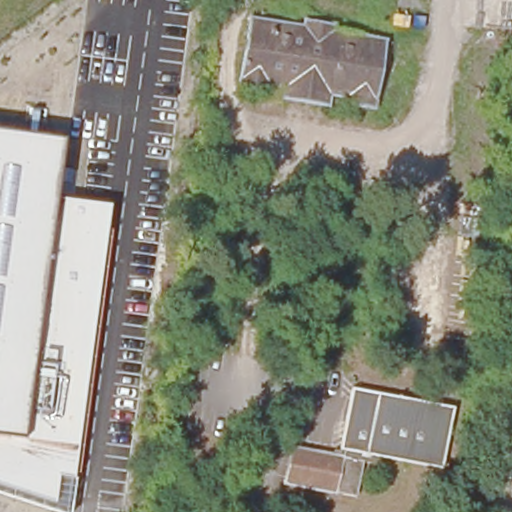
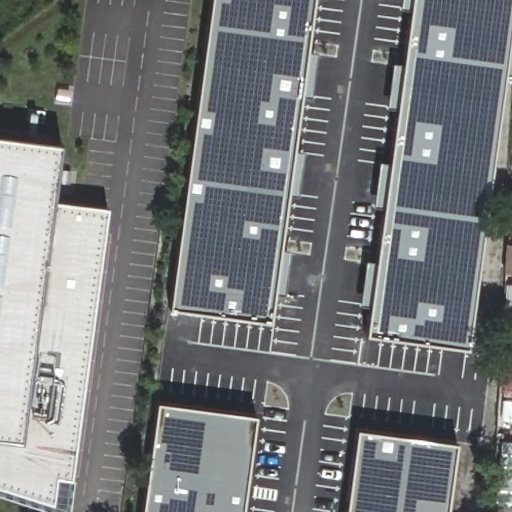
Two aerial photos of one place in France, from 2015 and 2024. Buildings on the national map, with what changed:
new [(208,0),(313,0),(270,322),(168,307),(208,0)]
new [(365,335),(410,0),(512,0),(512,2),(467,348),(365,335)]
demolished [(388,0),(423,0),(421,16),(387,13),(388,0)]
demolished [(486,41),(489,0),(512,0),(512,5),(509,43),(486,41)]
demolished [(272,89),(272,94),(242,89),(252,25),(303,33),(335,38),(385,46),(375,111),(346,106),(347,101),(335,99),(286,91),(272,89)]
unchanged [(52,199),(58,201),(107,207),(71,477),(74,478),(70,512),(55,512),(0,494),(0,133),(61,140),(52,199)]
demolished [(344,434),(346,420),(351,395),(376,399),(452,414),(439,475),(376,462),(364,460),(339,455),(344,434)]
new [(156,401),(256,414),(243,512),(141,512),(156,401)]
new [(456,441),(447,512),(344,512),(355,427),(456,441)]
new [(505,441),(512,442),(512,503),(499,502),(505,441)]
demolished [(353,502),(286,489),(292,455),(338,464),(360,467),(353,502)]

